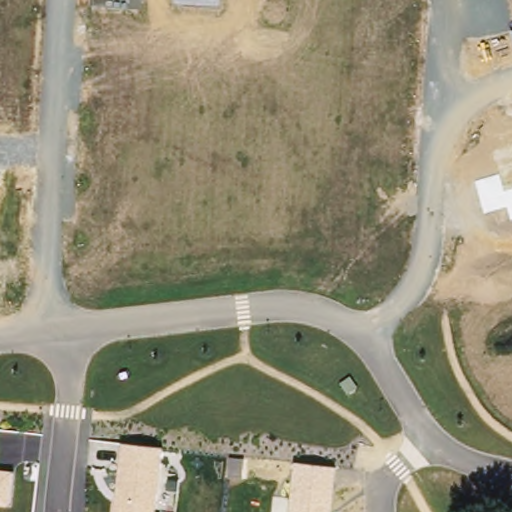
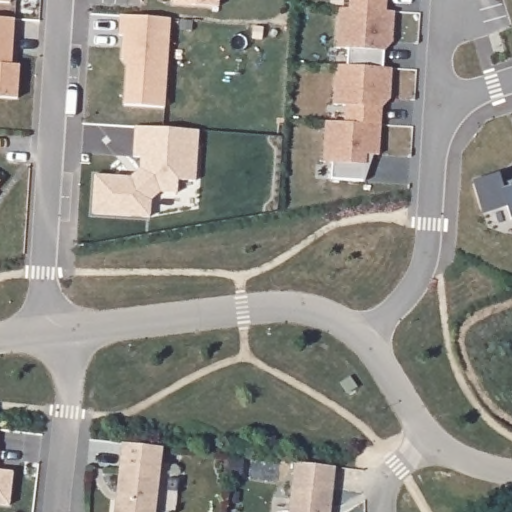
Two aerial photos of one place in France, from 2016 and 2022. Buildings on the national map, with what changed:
new [(10,5),(0,4),(0,0),(10,0),(10,5)]
new [(219,8),(174,5),(174,0),(219,0),(219,8)]
new [(387,12),(350,10),(351,0),(387,0),(387,12)]
new [(384,69),(348,67),(349,50),(338,49),(340,9),(350,10),(387,12),(395,13),(393,43),(385,52),(384,69)]
new [(170,20),(164,109),(124,107),(127,66),(122,60),(123,48),(124,37),(119,37),(120,17),(170,20)]
new [(11,64),(21,65),(19,98),(0,97),(0,18),(14,19),(11,64)]
new [(381,126),(345,123),(346,107),(334,106),(338,66),(348,67),(384,69),(393,70),(391,100),(383,109),(381,126)]
new [(331,180),(332,164),(324,163),(326,122),(345,123),(381,126),(379,156),(374,156),(365,183),(331,180)]
new [(141,159),(134,159),(135,128),(199,132),(195,183),(178,182),(178,195),(160,194),(150,202),(149,219),(92,215),(95,177),(131,179),(140,171),(141,159)]
new [(502,186),(512,183),(512,221),(511,222),(508,208),(484,215),(475,183),(499,176),(502,186)]
unchanged [(0,184),(0,180),(2,182),(0,184)]
unchanged [(113,512),(121,444),(163,448),(156,512),(113,512)]
unchanged [(335,469),(331,512),(289,512),(295,464),(335,469)]
unchanged [(0,506),(0,470),(13,472),(9,508),(0,506)]

